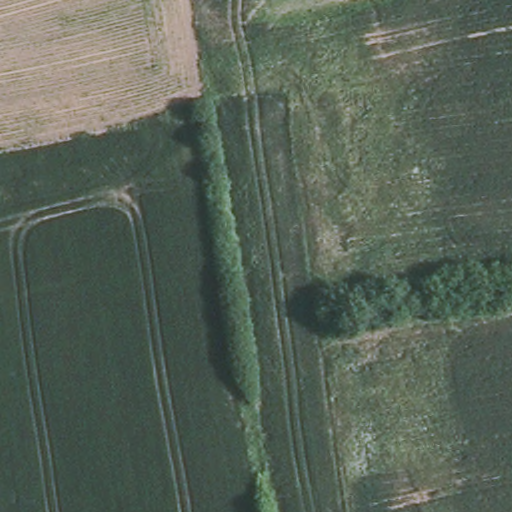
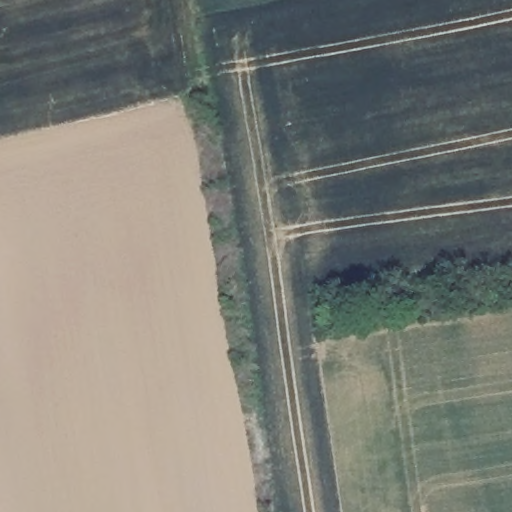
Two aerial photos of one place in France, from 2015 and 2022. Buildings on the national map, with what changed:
[]

